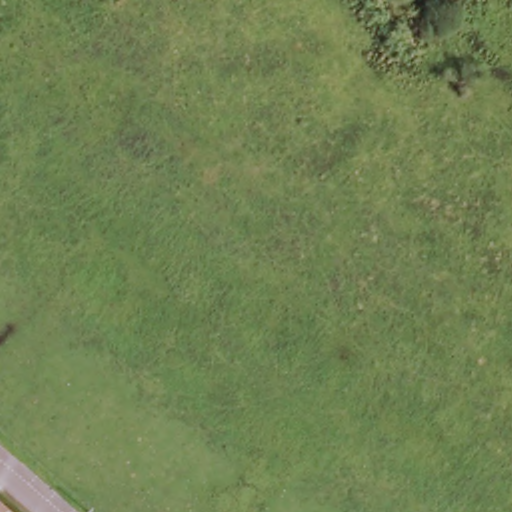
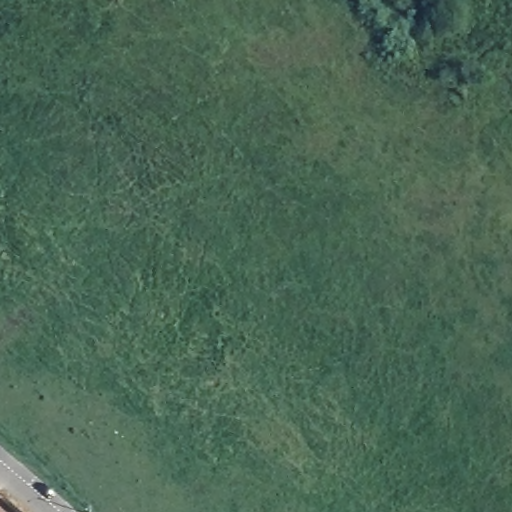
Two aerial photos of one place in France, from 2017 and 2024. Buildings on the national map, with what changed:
[]

